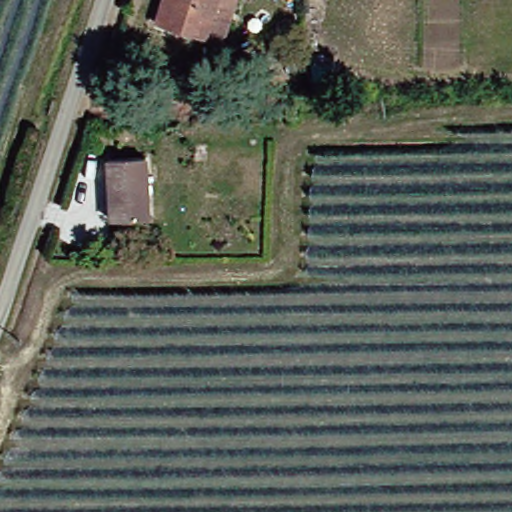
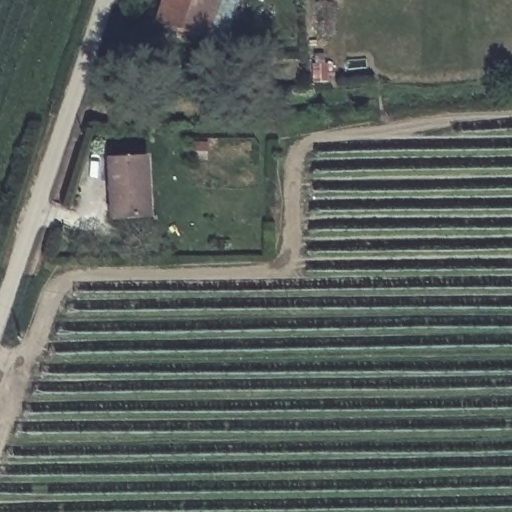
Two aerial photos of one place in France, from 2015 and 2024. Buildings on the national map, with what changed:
unchanged [(198,40),(148,24),(155,0),(211,0),(198,40)]
unchanged [(111,160),(148,159),(148,222),(111,222),(111,160)]

